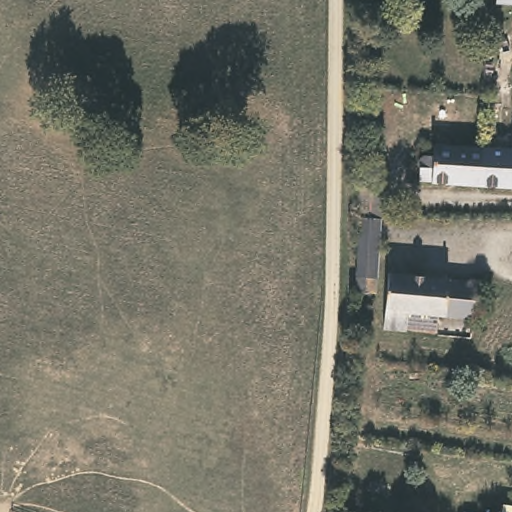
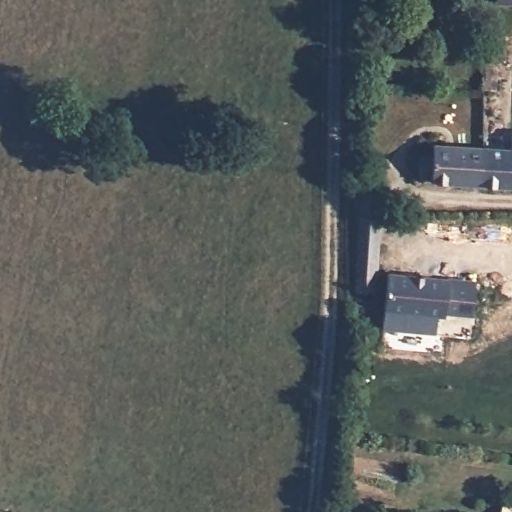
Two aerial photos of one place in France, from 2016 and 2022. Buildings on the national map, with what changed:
unchanged [(496,3),(497,0),(512,0),(512,4),(496,3)]
unchanged [(478,187),(418,183),(419,157),(431,158),(432,147),(480,149),(478,187)]
unchanged [(512,150),(512,190),(478,187),(480,149),(512,150)]
unchanged [(355,292),(360,219),(346,187),(366,187),(381,219),(377,294),(355,292)]
unchanged [(406,330),(406,331),(384,328),(388,274),(478,282),(473,318),(437,315),(436,332),(406,330)]

